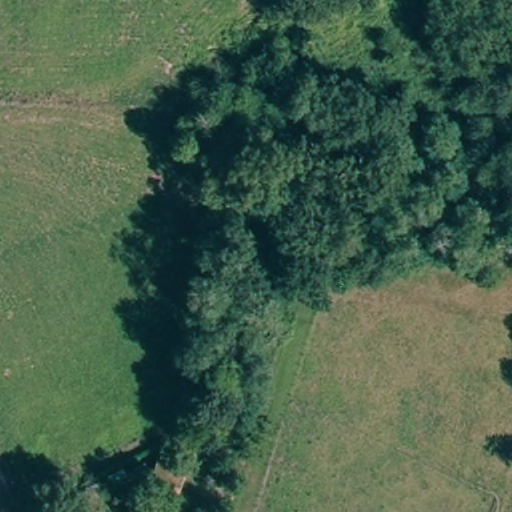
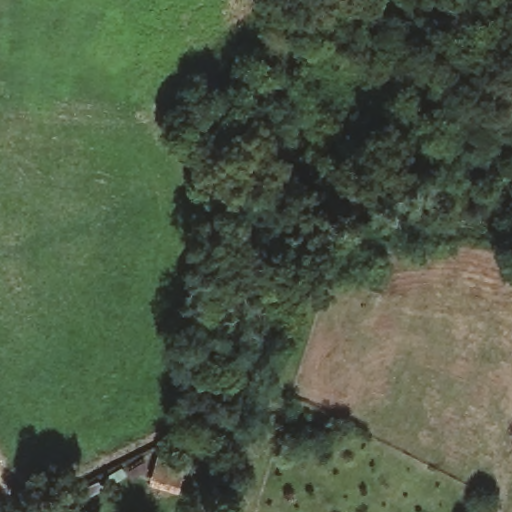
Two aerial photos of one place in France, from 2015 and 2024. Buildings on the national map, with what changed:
[]

